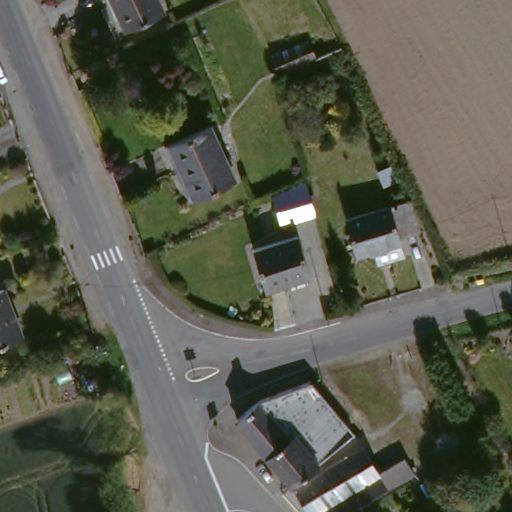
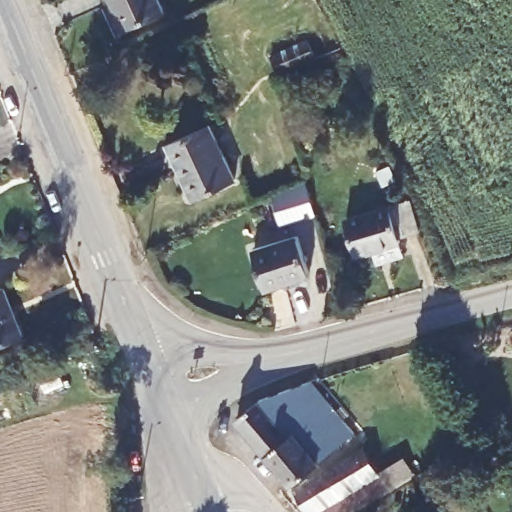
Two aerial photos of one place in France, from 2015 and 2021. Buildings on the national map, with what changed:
unchanged [(122,28),(110,0),(153,0),(158,11),(122,28)]
unchanged [(272,79),(264,59),(301,46),(309,64),(272,79)]
unchanged [(204,134),(226,185),(191,201),(168,149),(204,134)]
unchanged [(387,141),(402,177),(389,182),(375,146),(387,141)]
unchanged [(311,218),(274,228),(266,202),(266,201),(303,187),(311,218)]
unchanged [(373,263),(369,251),(352,257),(340,223),(400,200),(411,229),(393,236),(394,242),(399,254),(373,263)]
unchanged [(291,242),(303,280),(259,293),(248,255),(291,242)]
unchanged [(20,342),(0,349),(0,291),(3,290),(20,342)]
unchanged [(297,388),(307,388),(348,440),(282,491),(228,423),(269,396),(297,388)]
unchanged [(358,453),(374,479),(399,466),(408,481),(354,512),(299,512),(286,496),(358,453)]

